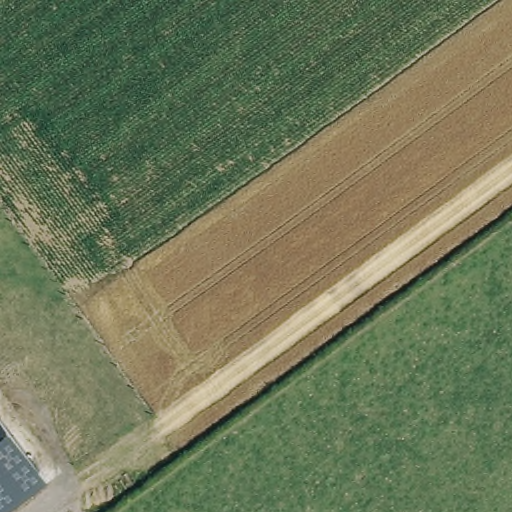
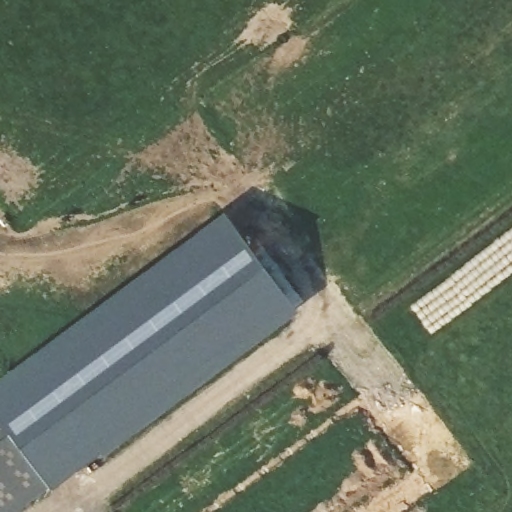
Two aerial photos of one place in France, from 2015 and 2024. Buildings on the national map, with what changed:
new [(104,456),(100,451),(51,488),(44,480),(0,421),(0,381),(226,211),(298,312),(104,456)]
unchanged [(0,421),(44,480),(3,512),(0,512),(0,421)]

